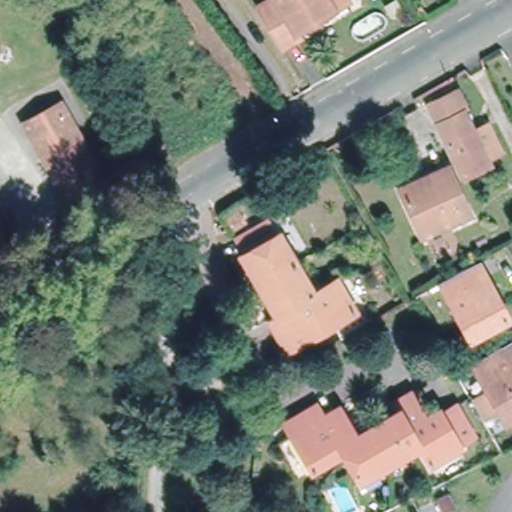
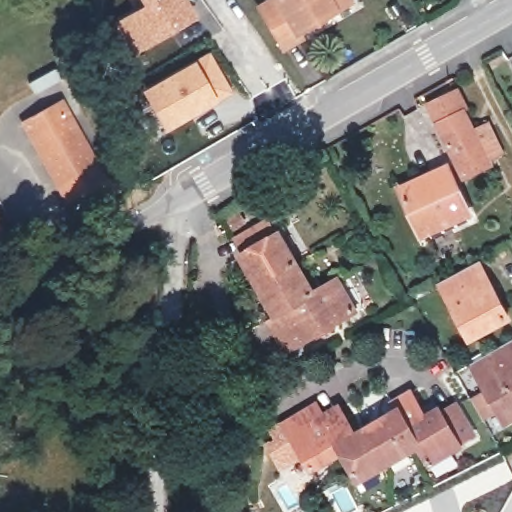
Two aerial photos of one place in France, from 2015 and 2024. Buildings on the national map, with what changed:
new [(140,5),(138,0),(187,0),(199,19),(133,55),(114,21),(140,5)]
unchanged [(304,28),(308,35),(291,44),(267,4),(274,0),(349,0),(304,28)]
new [(209,51),(233,92),(165,133),(140,91),(209,51)]
unchanged [(107,186),(95,192),(90,186),(64,202),(19,124),(60,102),(107,186)]
unchanged [(502,154),(485,162),(489,170),(464,182),(430,119),(458,105),(464,115),(462,117),(474,140),(489,130),(502,154)]
unchanged [(469,206),(417,236),(399,200),(395,192),(418,178),(447,162),(469,206)]
unchanged [(273,222),(279,232),(284,229),(304,266),(267,286),(249,256),(241,240),(273,222)]
unchanged [(510,317),(465,339),(440,288),(484,265),(510,317)]
unchanged [(318,292),(299,303),(309,318),(284,333),(275,320),(284,313),(267,286),(304,266),(318,292)]
unchanged [(342,280),(358,314),(295,351),(284,333),(309,318),(299,303),(318,292),(342,280)]
unchanged [(505,423),(474,362),(512,343),(512,420),(505,423)]
unchanged [(390,462),(372,430),(398,415),(394,407),(412,397),(426,421),(409,430),(419,447),(406,454),(390,462)]
unchanged [(473,436),(457,446),(459,451),(432,466),(419,447),(409,430),(426,421),(439,413),(454,404),(473,436)]
unchanged [(309,470),(287,427),(318,411),(325,423),(342,452),(309,470)]
unchanged [(359,478),(346,457),(342,452),(325,423),(343,413),(359,438),(372,430),(390,462),(359,478)]

